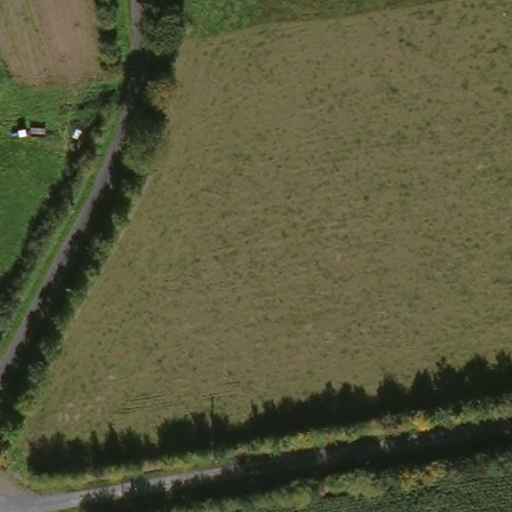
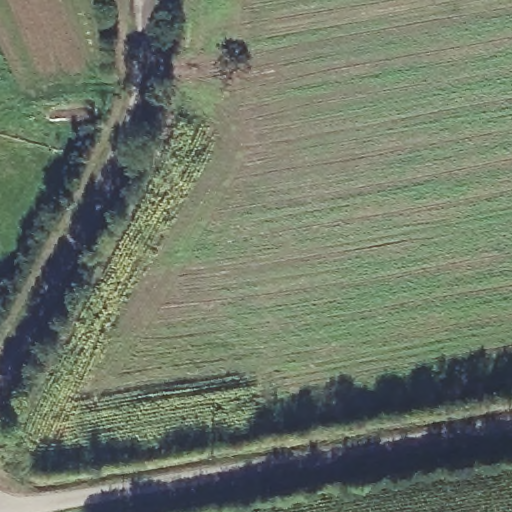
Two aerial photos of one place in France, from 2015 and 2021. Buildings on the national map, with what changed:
[]

